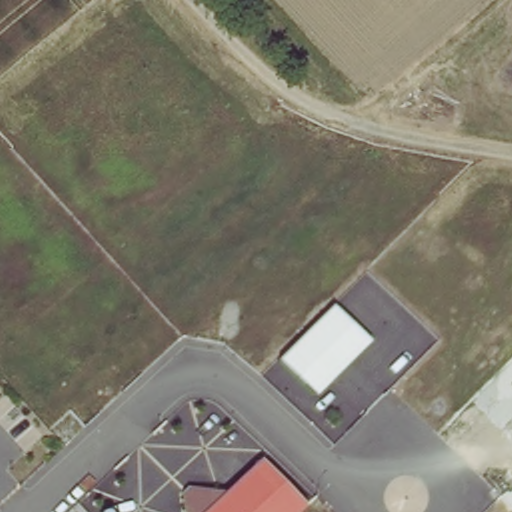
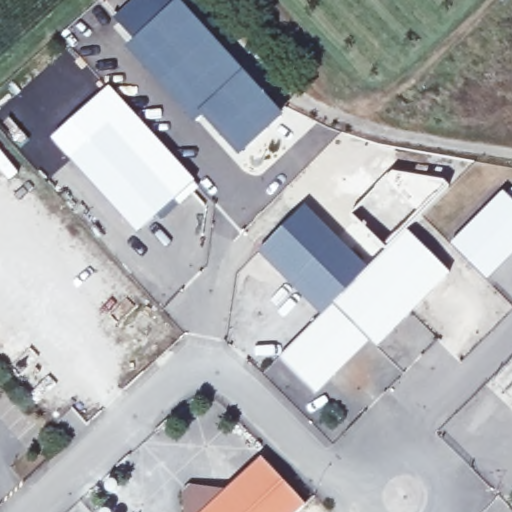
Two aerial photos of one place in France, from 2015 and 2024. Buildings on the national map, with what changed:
new [(176,0),(131,39),(111,17),(130,0),(176,0)]
new [(176,0),(179,0),(281,114),(237,157),(200,118),(193,124),(123,47),(131,39),(176,0)]
new [(171,200),(134,234),(64,158),(102,124),(171,200)]
new [(487,280),(452,245),(503,193),(512,202),(512,255),(487,280)]
new [(258,254),(305,206),(368,269),(405,232),(449,275),(376,347),(372,342),(334,306),(322,318),(258,254)]
unchanged [(334,306),(372,342),(317,396),(280,359),(334,306)]
unchanged [(182,492),(189,486),(226,491),(258,460),(305,507),(299,512),(186,512),(182,492)]

